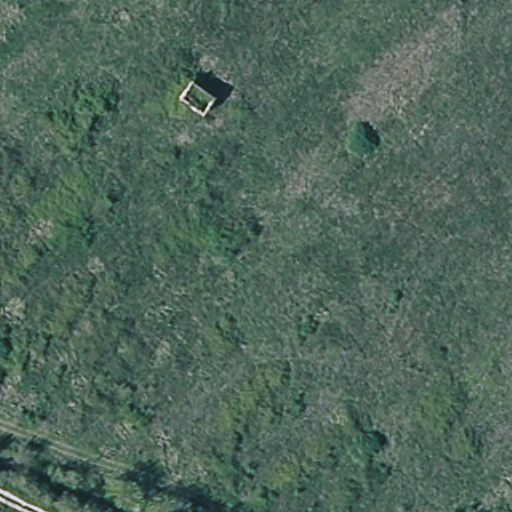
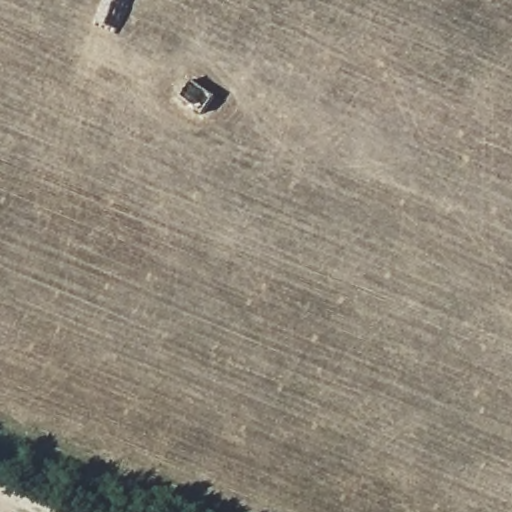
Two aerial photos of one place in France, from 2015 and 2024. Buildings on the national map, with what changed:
[]

